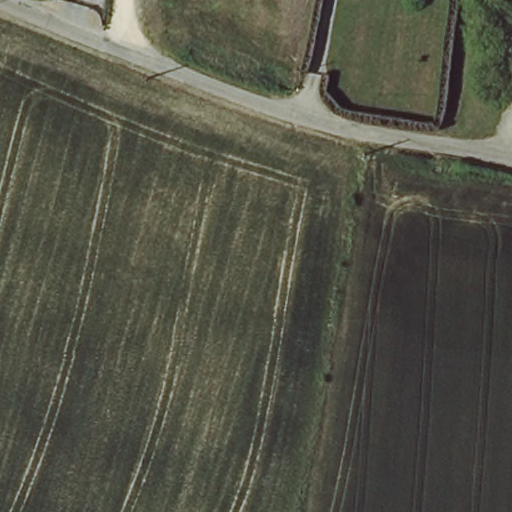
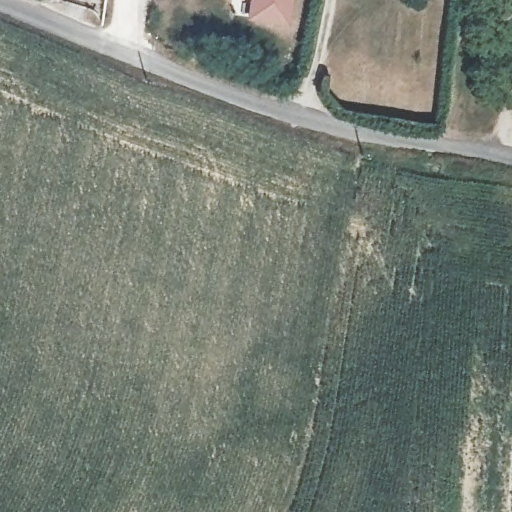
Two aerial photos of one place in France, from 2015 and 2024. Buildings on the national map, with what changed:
new [(288,25),(246,19),(247,0),(292,0),(288,25)]

